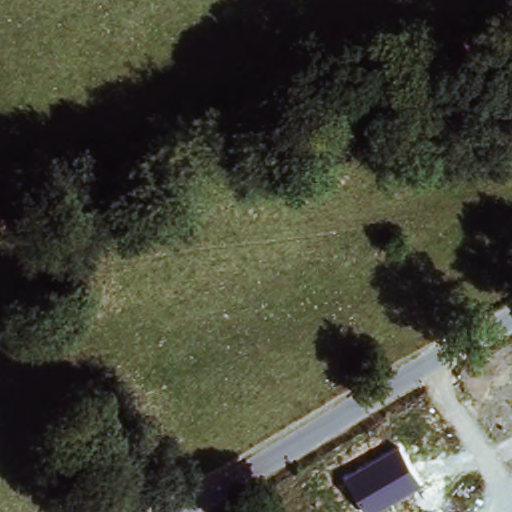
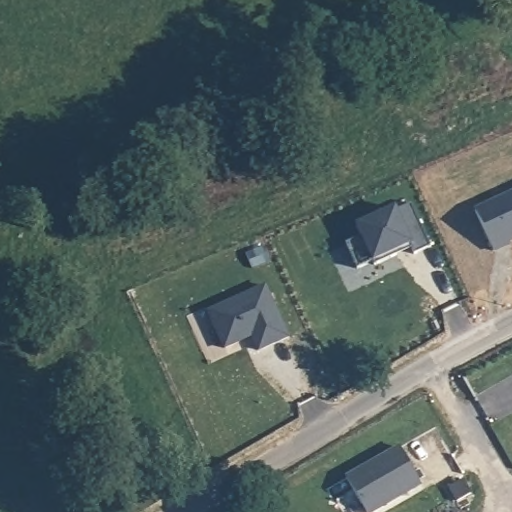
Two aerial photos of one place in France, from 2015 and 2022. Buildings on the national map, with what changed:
new [(512,252),(499,258),(481,217),(512,203),(512,252)]
new [(366,242),(361,231),(399,214),(400,217),(416,210),(435,253),(418,260),(416,254),(414,250),(399,257),(400,261),(379,270),(377,267),(361,274),(350,249),(366,242)]
new [(265,288),(289,339),(258,352),(252,337),(225,350),(208,313),(265,288)]
unchanged [(400,447),(421,484),(372,512),(368,512),(349,476),(400,447)]

